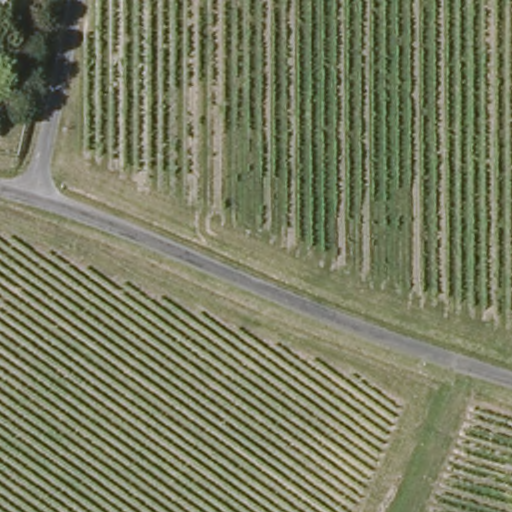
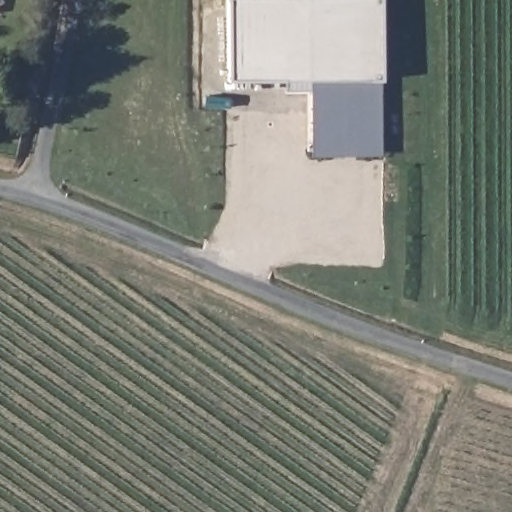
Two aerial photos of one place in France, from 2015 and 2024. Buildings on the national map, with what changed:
new [(380,153),(311,154),(311,76),(229,77),(227,0),(381,0),(380,153)]

